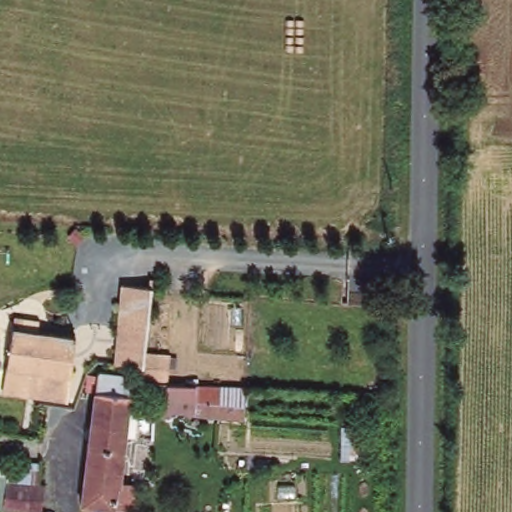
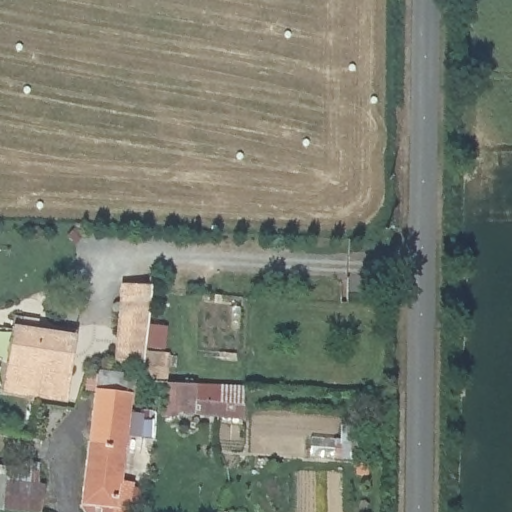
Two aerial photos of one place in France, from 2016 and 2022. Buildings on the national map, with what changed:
unchanged [(145,350),(169,354),(168,367),(117,361),(124,277),(151,279),(145,350)]
unchanged [(69,346),(13,339),(15,320),(71,326),(69,346)]
unchanged [(68,408),(2,400),(4,392),(13,339),(69,346),(77,348),(68,408)]
unchanged [(135,374),(133,393),(122,480),(141,485),(139,512),(81,512),(79,510),(80,503),(99,371),(135,374)]
unchanged [(182,414),(182,411),(163,411),(166,382),(218,384),(244,385),(243,406),(217,405),(217,416),(182,414)]
unchanged [(9,466),(15,467),(16,460),(41,463),(39,486),(9,485),(48,487),(44,512),(0,512),(0,465),(9,466)]

